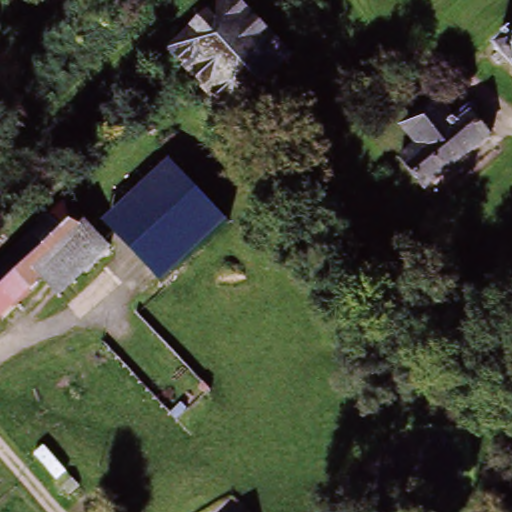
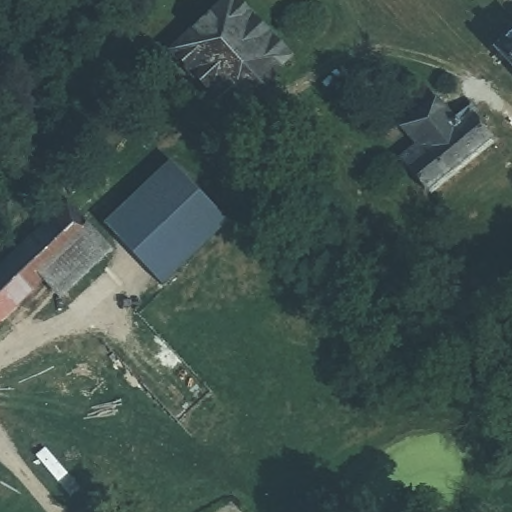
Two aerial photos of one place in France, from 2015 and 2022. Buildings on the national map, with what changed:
unchanged [(205,88),(169,49),(222,0),(234,0),(288,60),(228,114),(205,88)]
unchanged [(505,57),(499,63),(492,56),(498,50),(496,47),(512,32),(512,64),(505,57)]
unchanged [(425,137),(410,117),(439,97),(457,124),(480,109),(482,114),(478,116),(495,142),(426,188),(402,152),(425,137)]
unchanged [(169,163),(226,221),(160,286),(105,226),(169,163)]
unchanged [(0,271),(67,209),(105,249),(57,295),(44,282),(18,305),(0,287),(0,271)]
unchanged [(0,287),(18,305),(0,322),(0,287)]

